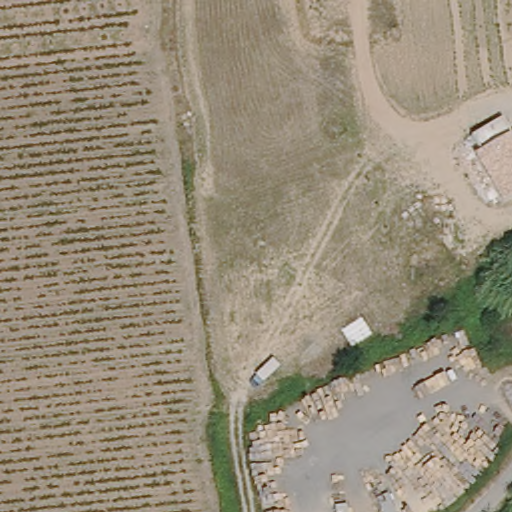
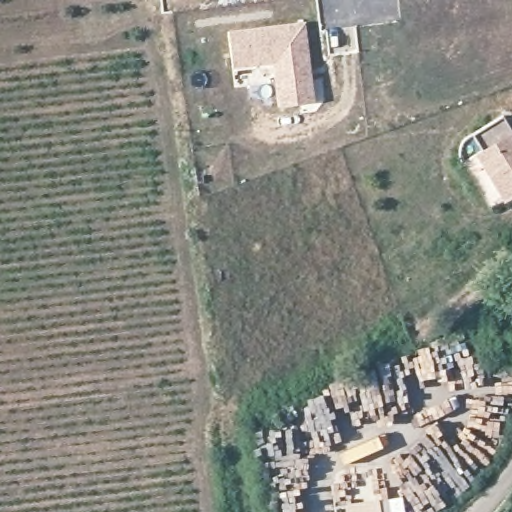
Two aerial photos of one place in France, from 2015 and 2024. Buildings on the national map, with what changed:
new [(305,20),(316,102),(278,107),(272,64),(232,70),(227,30),(305,20)]
unchanged [(482,150),(473,134),(502,115),(512,131),(512,198),(502,203),(475,154),(482,150)]
new [(391,512),(335,512),(335,504),(388,498),(391,512)]

